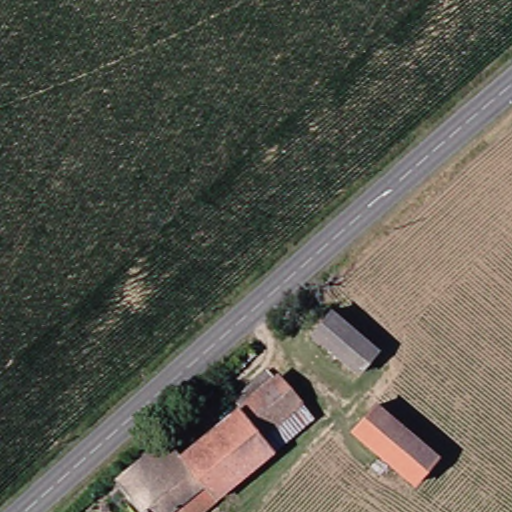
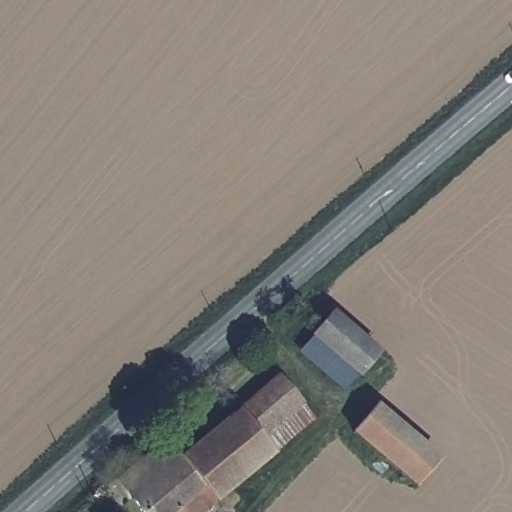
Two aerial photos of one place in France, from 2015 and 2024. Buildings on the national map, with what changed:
unchanged [(326,310),(372,347),(353,371),(307,332),(326,310)]
unchanged [(234,408),(270,378),(308,420),(270,453),(234,408)]
unchanged [(346,435),(368,407),(391,425),(432,459),(408,487),(362,449),(346,435)]
unchanged [(122,503),(172,461),(234,408),(270,453),(201,512),(131,512),(122,503)]
unchanged [(104,482),(155,440),(172,461),(122,503),(104,482)]

